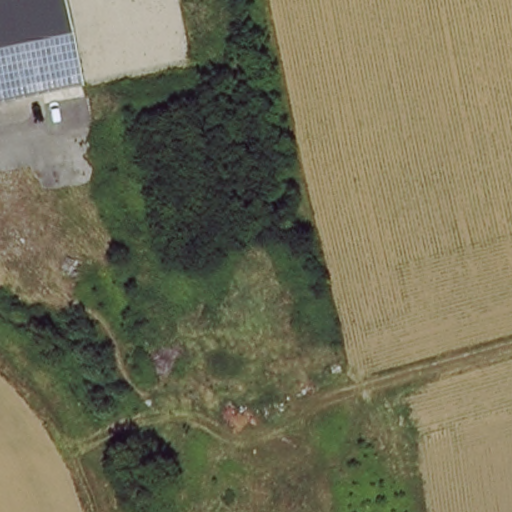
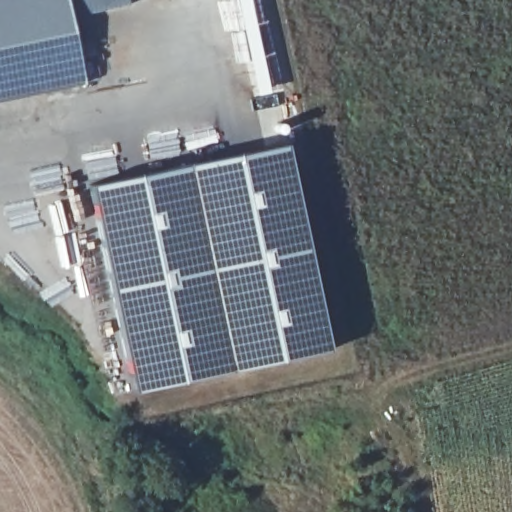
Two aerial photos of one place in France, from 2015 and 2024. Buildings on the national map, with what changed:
unchanged [(0,97),(0,0),(68,0),(85,81),(0,97)]
new [(285,146),(330,352),(133,389),(90,189),(285,146)]

